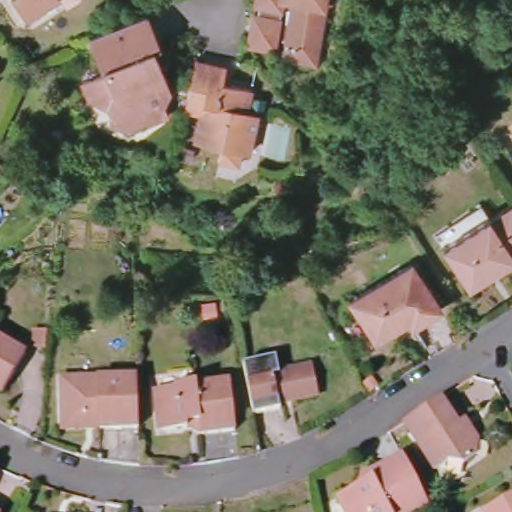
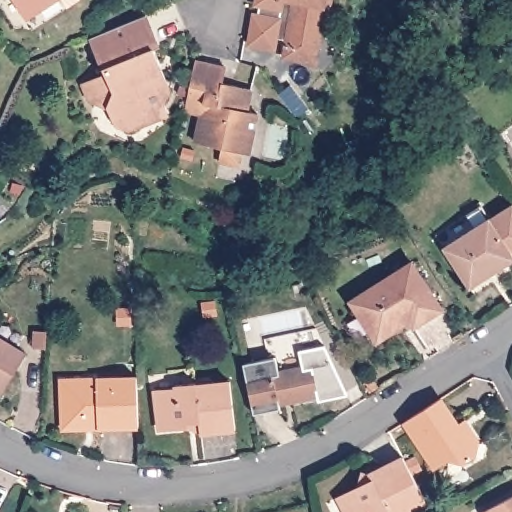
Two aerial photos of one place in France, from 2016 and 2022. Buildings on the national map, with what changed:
unchanged [(12,0),(54,0),(25,19),(12,0)]
unchanged [(59,0),(77,0),(65,9),(59,0)]
unchanged [(255,9),(256,3),(252,1),(253,0),(326,0),(324,12),(319,11),(315,40),(319,41),(316,61),(302,58),(303,53),(280,48),(282,34),(284,28),(276,26),(275,34),(264,40),(261,39),(247,37),(250,23),(252,8),(255,9)]
unchanged [(125,135),(113,126),(107,110),(87,98),(80,82),(102,74),(87,39),(137,18),(143,16),(155,46),(150,49),(162,78),(168,81),(162,101),(157,121),(140,129),(125,135)]
unchanged [(222,66),(219,81),(247,89),(242,110),(254,113),(245,153),(237,151),(235,164),(215,160),(218,146),(191,140),(197,113),(182,109),(187,88),(193,60),(222,66)]
unchanged [(512,207),(512,262),(469,289),(442,248),(488,220),(489,221),(512,206),(512,207)]
unchanged [(348,297),(409,258),(441,310),(414,326),(407,317),(401,321),(405,325),(377,343),(348,297)]
unchanged [(0,339),(25,355),(2,391),(0,390),(0,339)]
unchanged [(241,359),(275,352),(277,366),(285,365),(285,369),(311,364),(316,390),(289,397),(288,393),(277,396),(279,405),(252,411),(241,359)]
unchanged [(54,377),(140,374),(142,425),(90,428),(55,428),(55,420),(54,377)]
unchanged [(197,418),(183,419),(184,424),(164,426),(157,416),(155,388),(177,386),(177,382),(195,381),(195,383),(227,380),(232,426),(197,429),(197,418)]
unchanged [(439,400),(460,431),(467,428),(476,443),(472,460),(460,466),(445,464),(433,471),(403,423),(439,400)]
unchanged [(415,457),(422,469),(412,474),(427,505),(412,512),(348,512),(340,497),(372,480),(370,474),(404,458),(406,462),(415,457)]
unchanged [(512,497),(512,512),(485,512),(512,497)]

